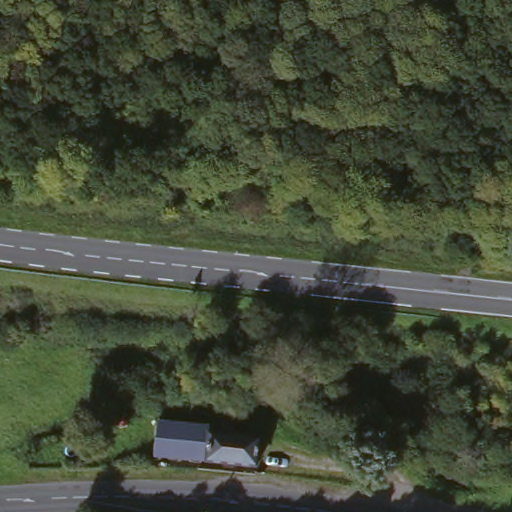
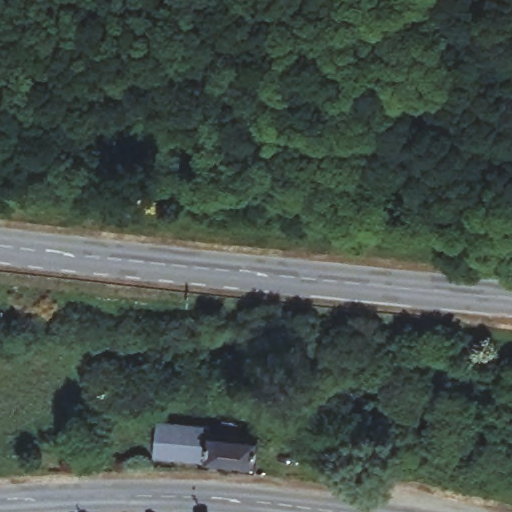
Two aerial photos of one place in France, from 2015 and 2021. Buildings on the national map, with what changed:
unchanged [(261,445),(261,466),(184,461),(151,458),(153,429),(198,430),(197,434),(261,437),(261,445)]

